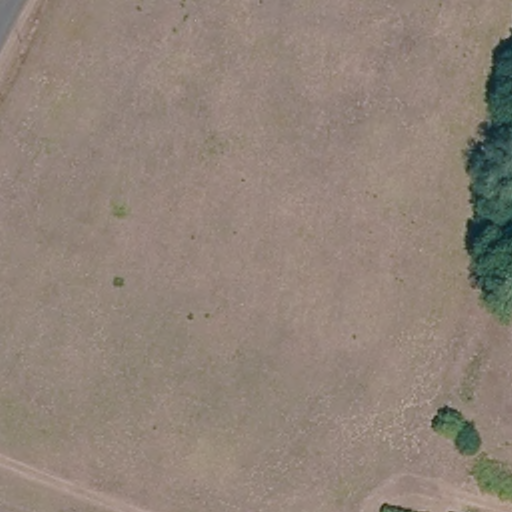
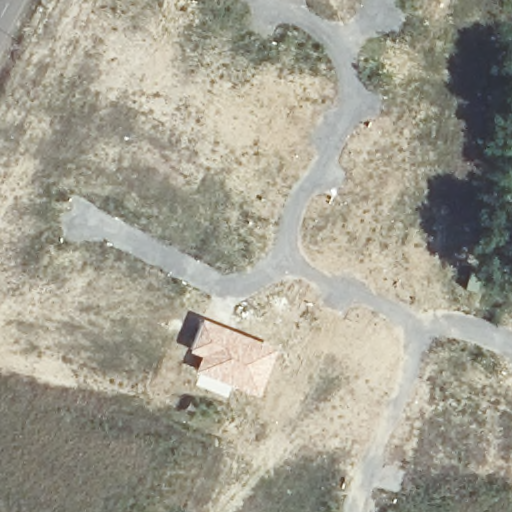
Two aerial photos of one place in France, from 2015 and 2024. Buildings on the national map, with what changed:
new [(202,318),(277,347),(257,396),(232,386),(228,398),(195,384),(199,374),(194,372),(200,357),(187,351),(202,318)]
unchanged [(397,512),(388,512),(388,510),(397,512)]

